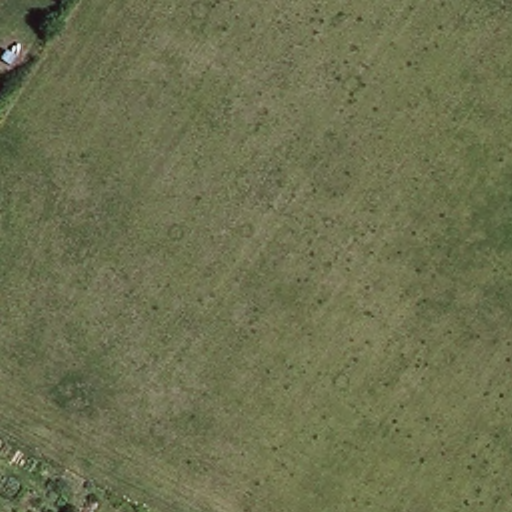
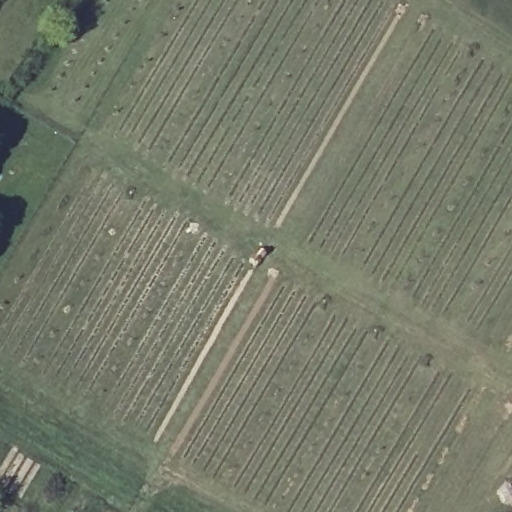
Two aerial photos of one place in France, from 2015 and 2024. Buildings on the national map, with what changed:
[]

